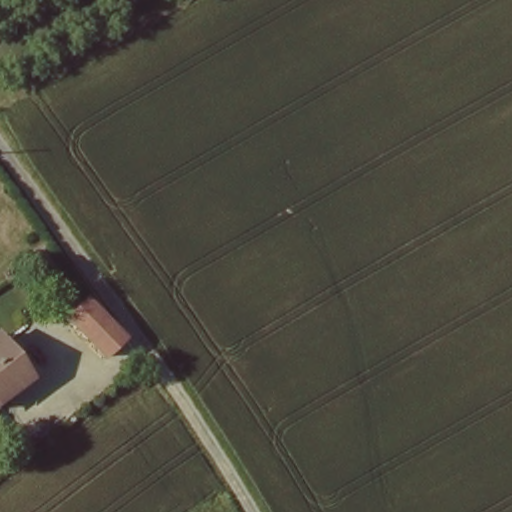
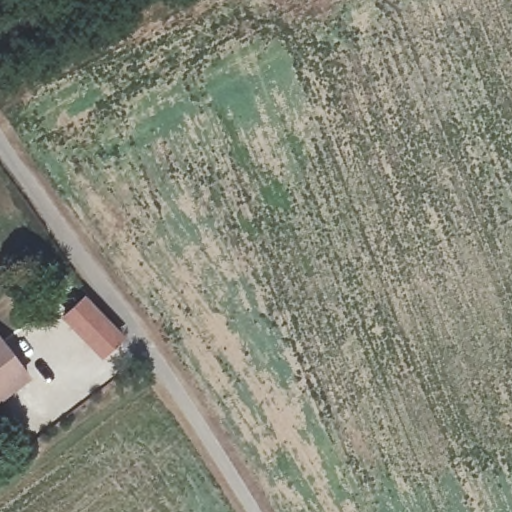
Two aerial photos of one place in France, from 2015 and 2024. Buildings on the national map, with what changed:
unchanged [(101,355),(61,316),(79,297),(117,338),(101,355)]
unchanged [(0,396),(0,344),(25,375),(0,396)]

